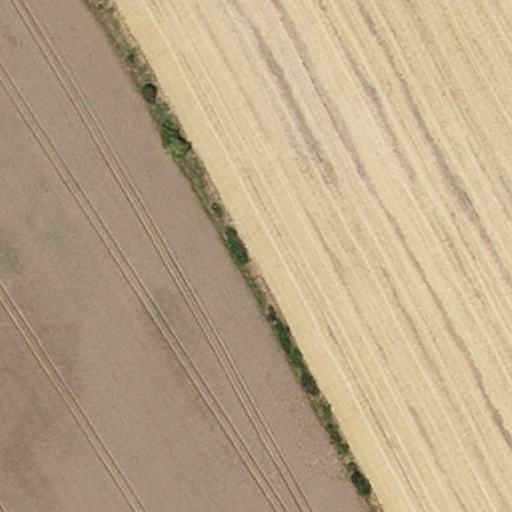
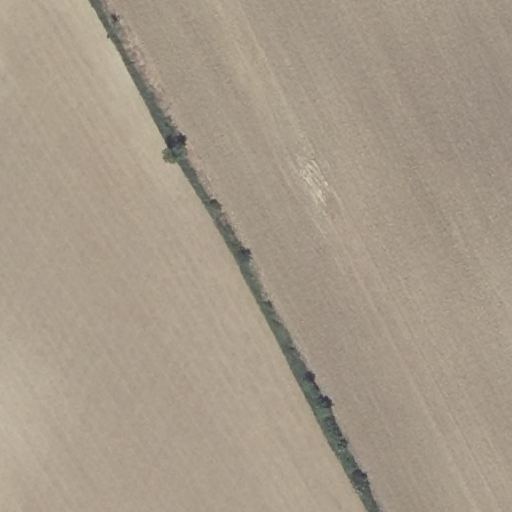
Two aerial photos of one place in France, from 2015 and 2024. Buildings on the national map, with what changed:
[]

